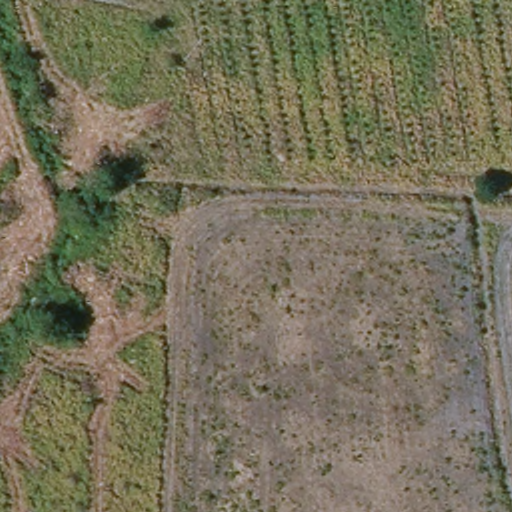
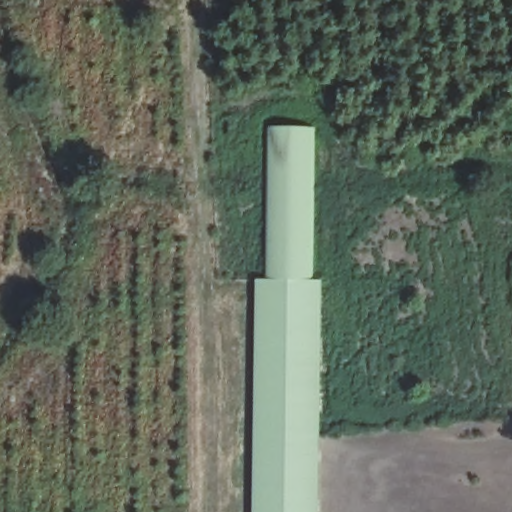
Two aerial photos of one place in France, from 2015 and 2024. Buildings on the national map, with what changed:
new [(268,277),(269,127),(316,128),(313,278),(268,277)]
new [(321,278),(319,512),(255,512),(256,277),(321,278)]

